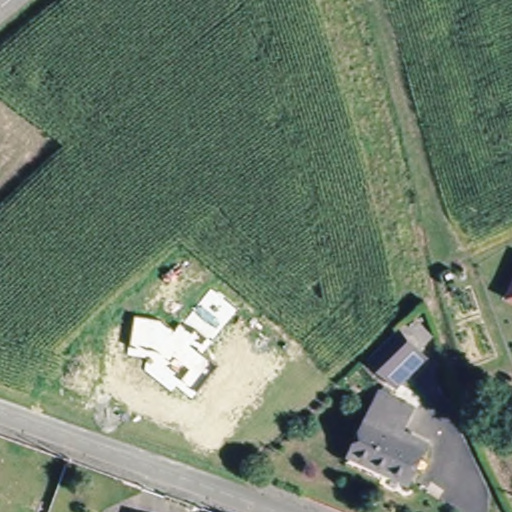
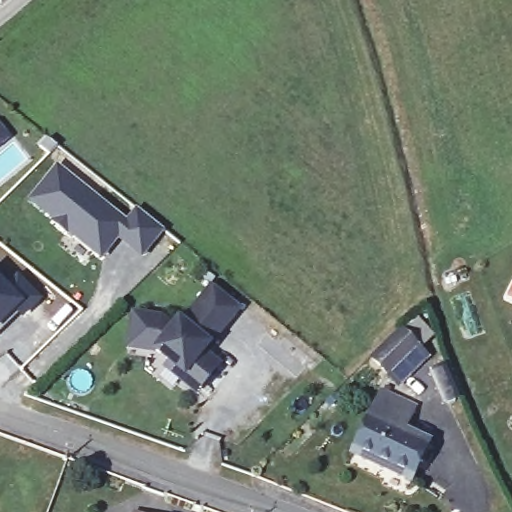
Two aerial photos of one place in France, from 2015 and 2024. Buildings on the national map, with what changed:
new [(0,134),(0,120),(7,127),(0,134)]
new [(58,167),(126,224),(139,209),(163,229),(141,255),(118,236),(101,257),(69,230),(66,232),(54,221),(55,220),(31,200),(58,167)]
new [(19,279),(39,300),(23,315),(21,313),(0,333),(0,283),(7,290),(19,279)]
new [(218,367),(196,393),(179,380),(188,370),(174,360),(170,364),(156,352),(129,347),(134,316),(162,320),(174,331),(180,324),(183,326),(212,291),(237,312),(212,342),(202,354),(218,367)]
unchanged [(511,297),(512,294),(512,298),(511,297)]
unchanged [(396,385),(389,377),(368,356),(397,327),(416,310),(437,330),(419,348),(426,355),(396,385)]
unchanged [(411,477),(353,450),(382,386),(415,402),(406,425),(430,436),(411,477)]
unchanged [(136,511),(139,512),(136,512),(136,511)]

